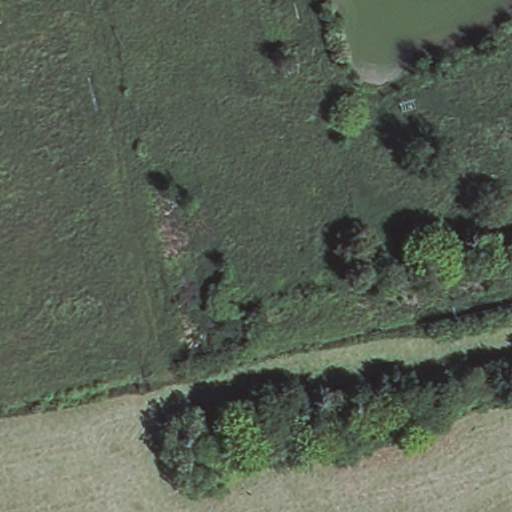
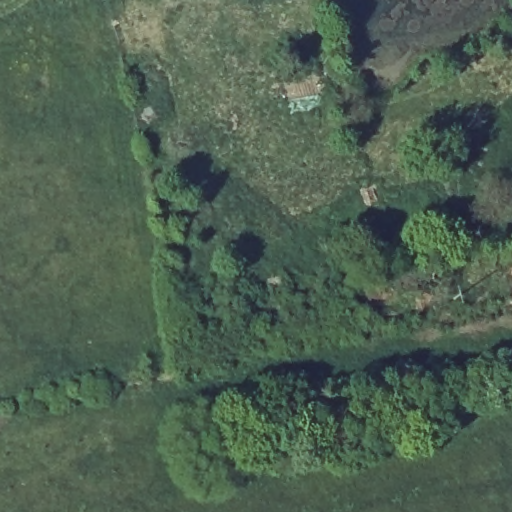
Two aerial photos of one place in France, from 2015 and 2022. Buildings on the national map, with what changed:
unchanged [(187,338),(198,335),(203,355),(184,359),(180,340),(187,338)]

